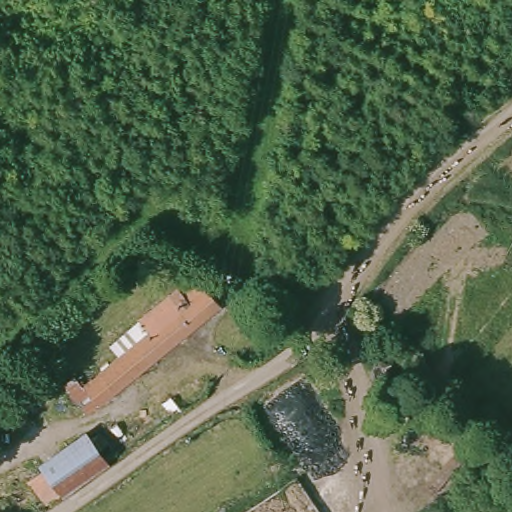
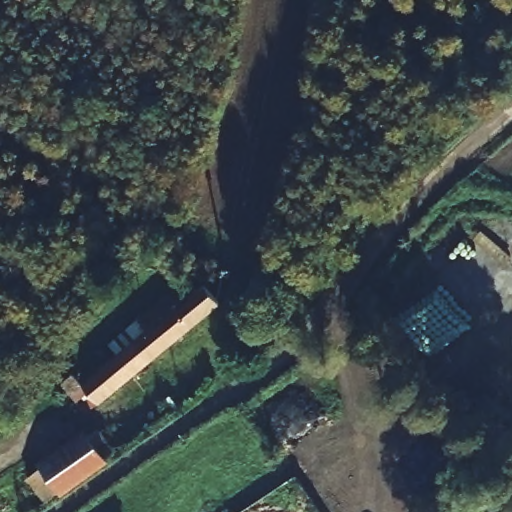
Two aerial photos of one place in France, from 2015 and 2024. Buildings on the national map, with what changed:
unchanged [(92,410),(77,394),(151,335),(146,328),(158,319),(179,341),(92,410)]
unchanged [(97,432),(116,461),(45,508),(25,480),(97,432)]

